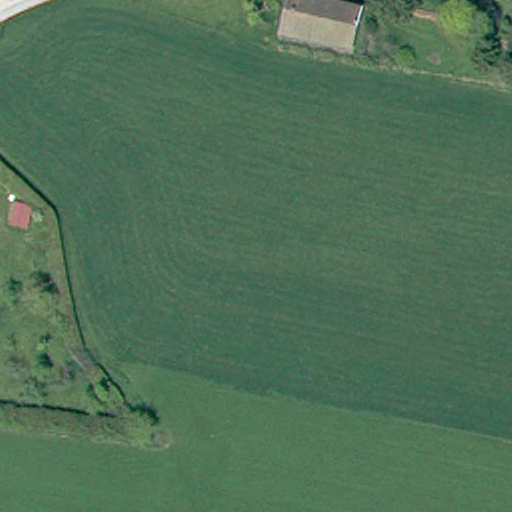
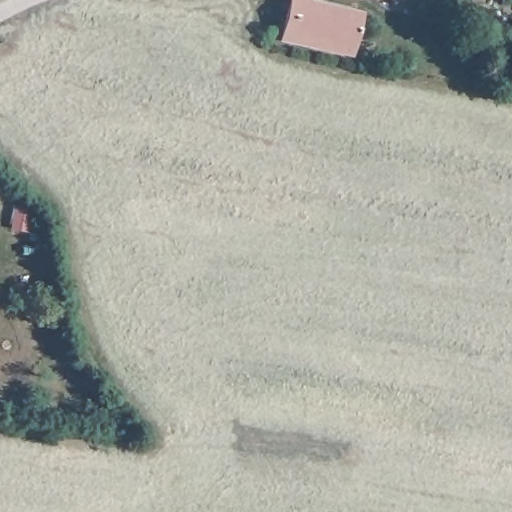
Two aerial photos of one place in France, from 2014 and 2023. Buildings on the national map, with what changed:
unchanged [(313,0),(315,4),(363,14),(354,53),(281,36),(289,0),(313,0)]

